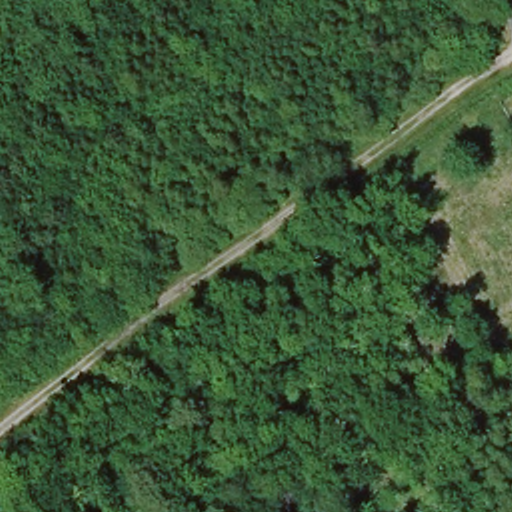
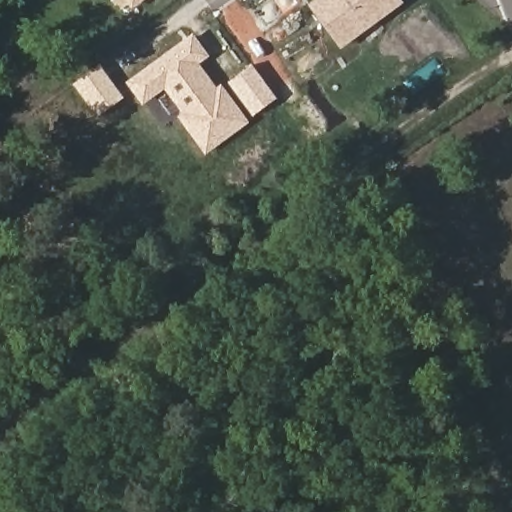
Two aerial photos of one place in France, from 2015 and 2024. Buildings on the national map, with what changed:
new [(135,5),(130,0),(143,0),(135,5)]
new [(314,0),(402,0),(403,1),(341,47),(311,2),(314,0)]
new [(194,32),(210,54),(200,62),(219,88),(223,83),(250,122),(205,155),(179,115),(182,112),(165,87),(143,103),(127,81),(194,32)]

